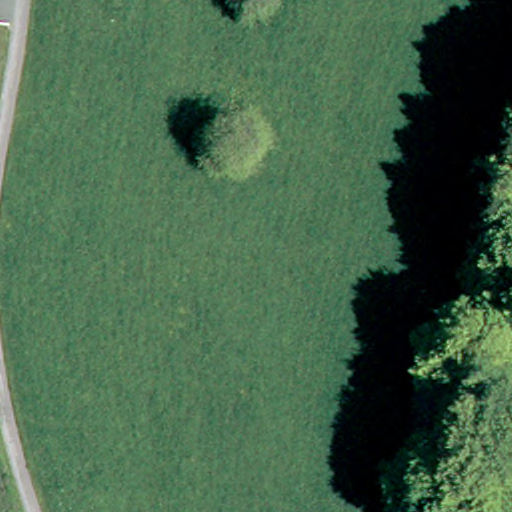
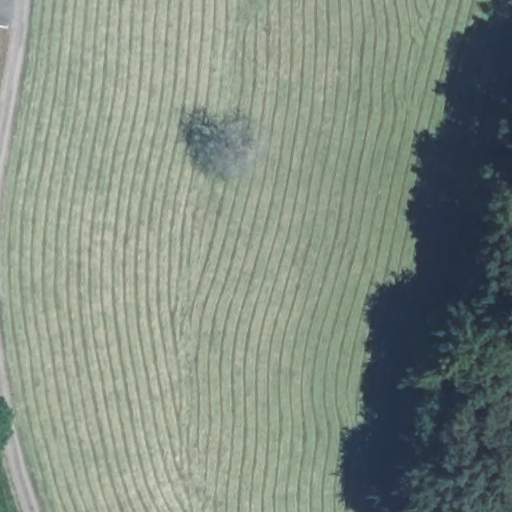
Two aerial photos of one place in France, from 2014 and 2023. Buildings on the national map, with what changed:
[]

